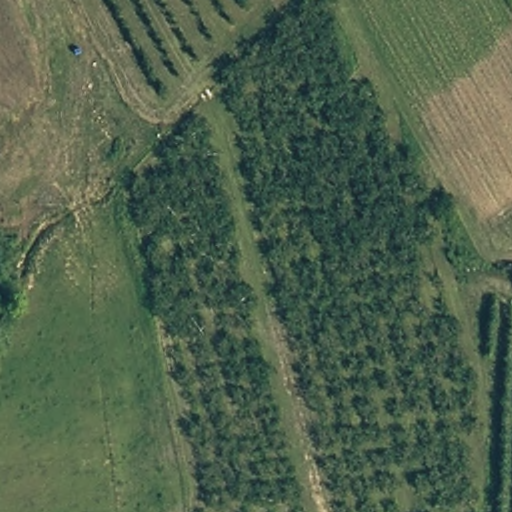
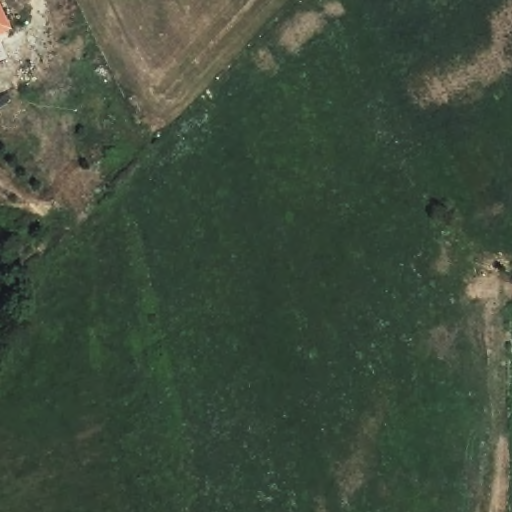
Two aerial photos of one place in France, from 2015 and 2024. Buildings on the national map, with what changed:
new [(0,33),(0,2),(11,28),(0,33)]

